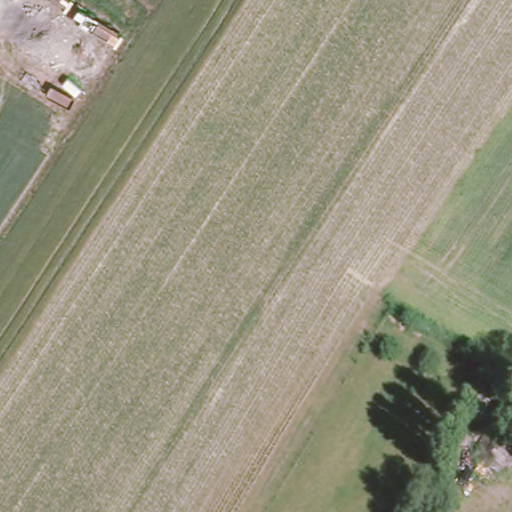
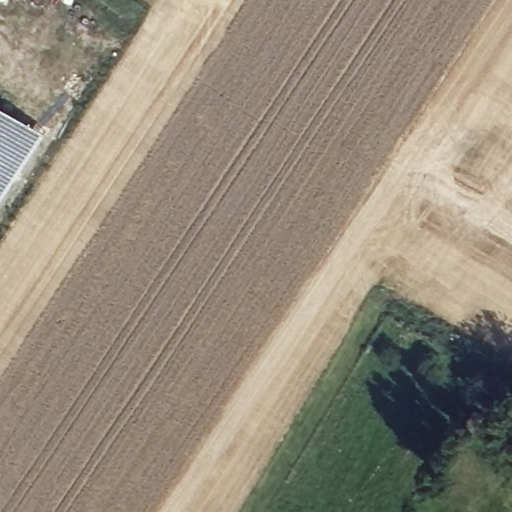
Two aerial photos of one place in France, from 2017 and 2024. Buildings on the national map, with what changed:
new [(0,203),(0,102),(46,132),(0,203)]
unchanged [(485,402),(499,412),(488,426),(474,416),(485,402)]

